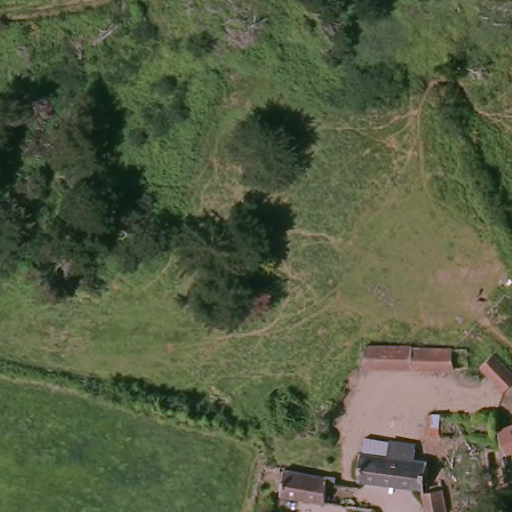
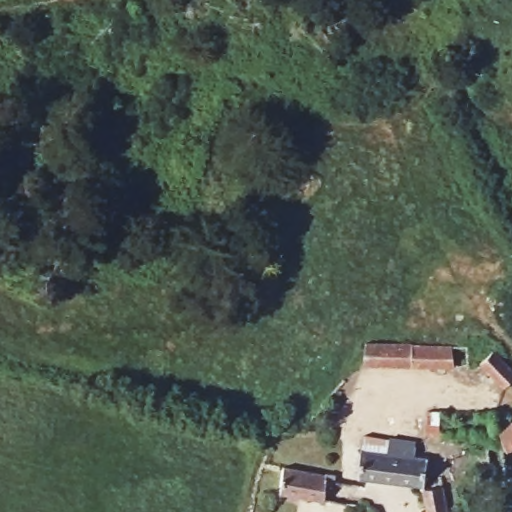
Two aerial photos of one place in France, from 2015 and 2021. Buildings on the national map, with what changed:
unchanged [(372,352),(460,357),(458,376),(370,374),(372,352)]
unchanged [(511,385),(496,393),(483,369),(498,360),(511,385)]
unchanged [(490,434),(512,427),(512,456),(500,461),(490,434)]
unchanged [(407,450),(405,464),(420,466),(418,493),(353,485),(359,444),(407,450)]
unchanged [(315,482),(322,482),(322,504),(305,503),(277,501),(280,479),(315,482)]
unchanged [(418,493),(438,495),(440,512),(417,512),(416,511),(418,493)]

